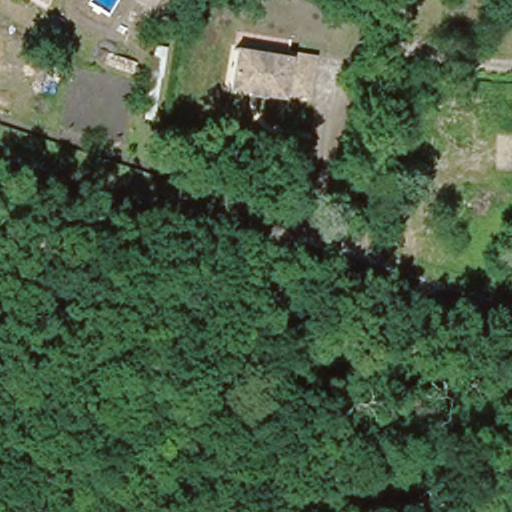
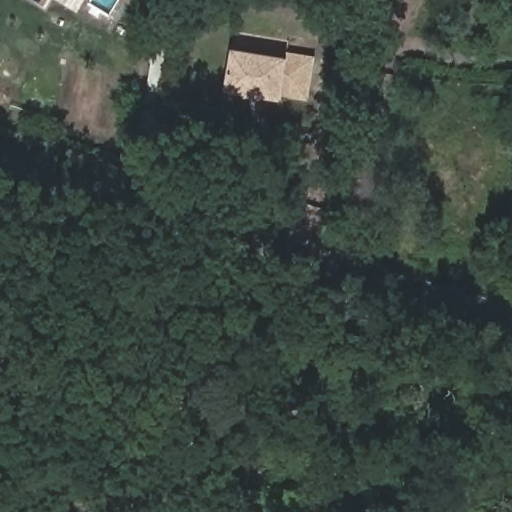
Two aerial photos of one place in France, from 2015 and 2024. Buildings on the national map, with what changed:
unchanged [(250,90),(251,88),(230,85),(234,44),(287,50),(288,45),(315,49),(311,91),(270,86),(270,90),(265,90),(264,92),(250,90)]

